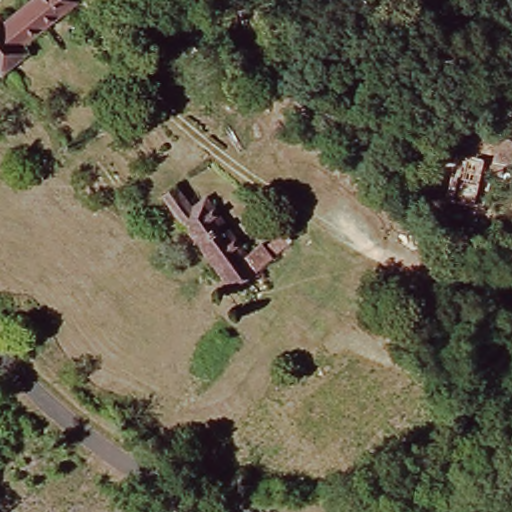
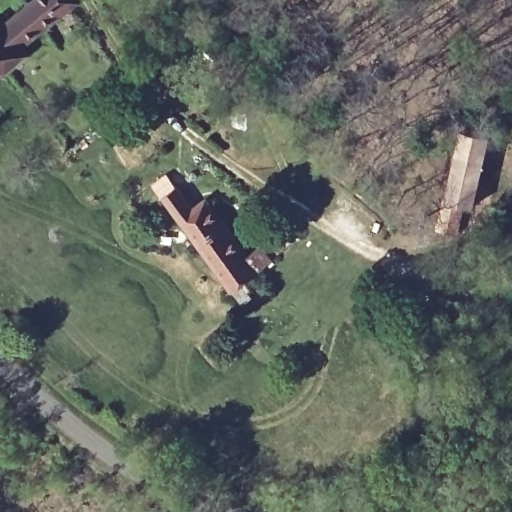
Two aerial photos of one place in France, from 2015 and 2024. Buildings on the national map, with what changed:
unchanged [(63,17),(20,49),(25,56),(0,77),(0,22),(3,26),(39,0),(50,0),(63,17)]
new [(459,128),(488,134),(473,205),(444,198),(459,128)]
unchanged [(249,262),(260,252),(269,254),(283,244),(288,251),(279,263),(231,297),(163,204),(178,194),(193,213),(208,204),(249,262)]

